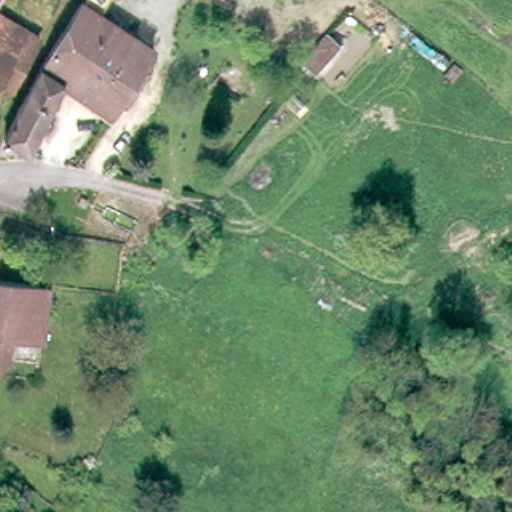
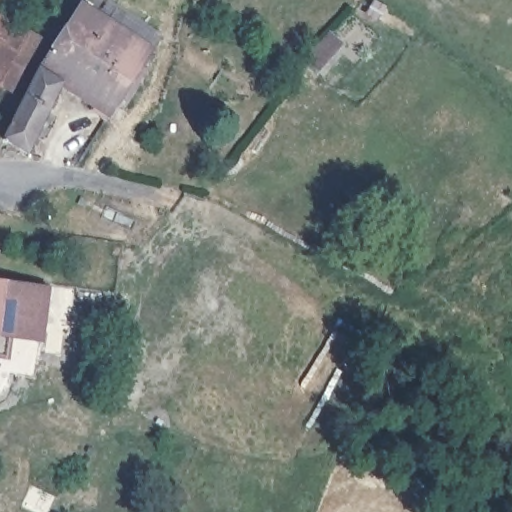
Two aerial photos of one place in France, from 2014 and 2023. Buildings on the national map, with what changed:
unchanged [(133,86),(139,92),(125,112),(117,106),(107,121),(103,119),(59,90),(29,159),(6,148),(44,72),(55,52),(67,32),(80,13),(85,6),(91,0),(110,0),(98,16),(152,54),(156,57),(133,86)]
unchanged [(8,96),(0,92),(0,22),(37,43),(8,96)]
unchanged [(40,337),(9,332),(4,359),(0,362),(0,280),(49,288),(40,337)]

